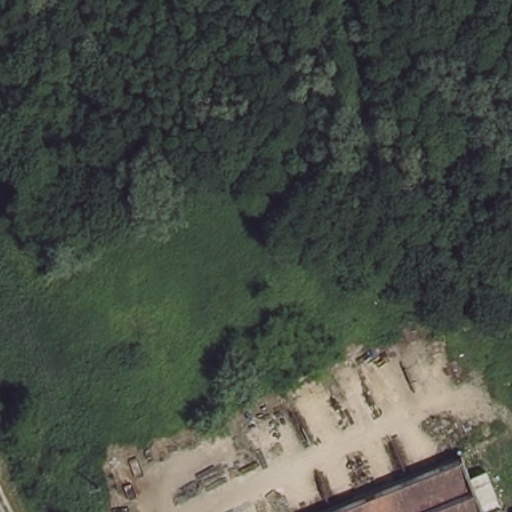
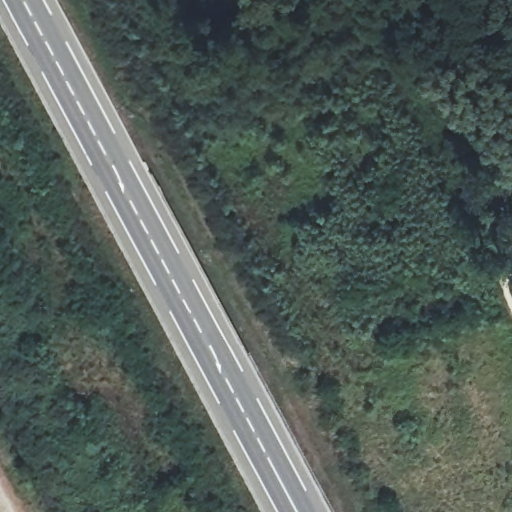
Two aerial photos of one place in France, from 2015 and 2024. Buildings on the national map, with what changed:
demolished [(486,512),(328,512),(352,502),(461,455),(470,476),(486,512)]
demolished [(486,469),(506,512),(486,512),(470,476),(486,469)]

